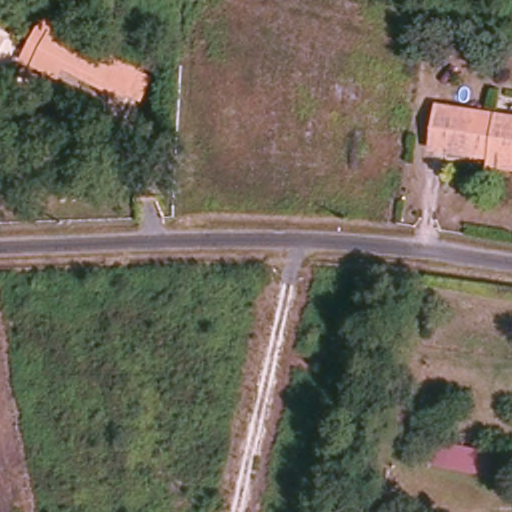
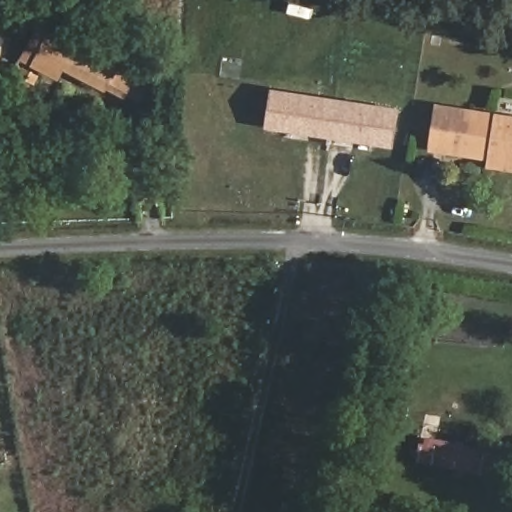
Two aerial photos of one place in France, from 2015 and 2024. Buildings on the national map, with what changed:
unchanged [(139,101),(125,93),(108,85),(105,89),(65,69),(59,81),(36,70),(39,65),(25,58),(43,23),(56,31),(53,37),(86,54),(91,47),(136,69),(151,77),(139,101)]
new [(277,92),(401,106),(397,140),(273,125),(277,92)]
unchanged [(486,167),(488,156),(430,149),(435,108),(512,116),(512,170),(486,167)]
unchanged [(448,470),(450,442),(482,447),(482,452),(494,454),(492,478),(448,470)]

